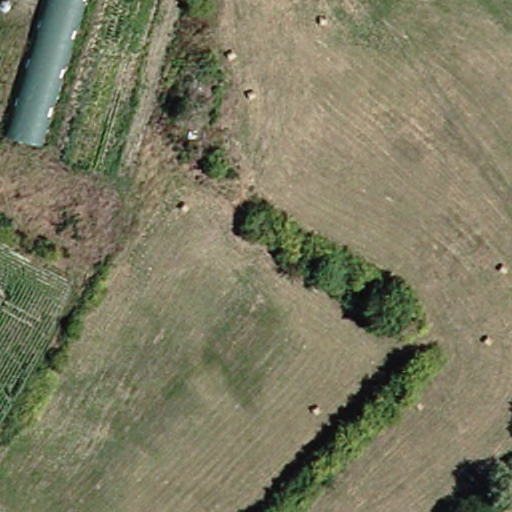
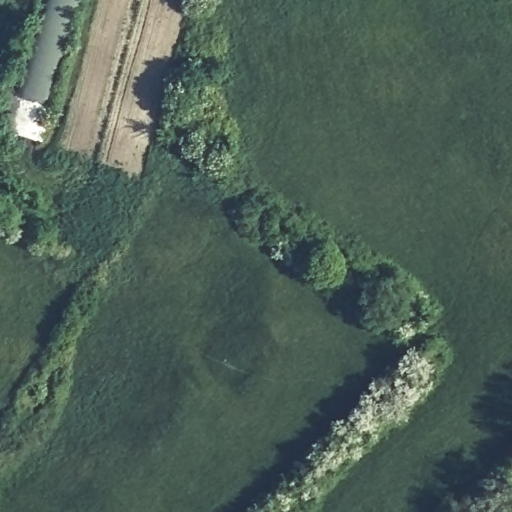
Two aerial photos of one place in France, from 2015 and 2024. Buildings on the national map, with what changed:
unchanged [(0,135),(0,118),(35,0),(78,0),(35,144),(0,135)]

